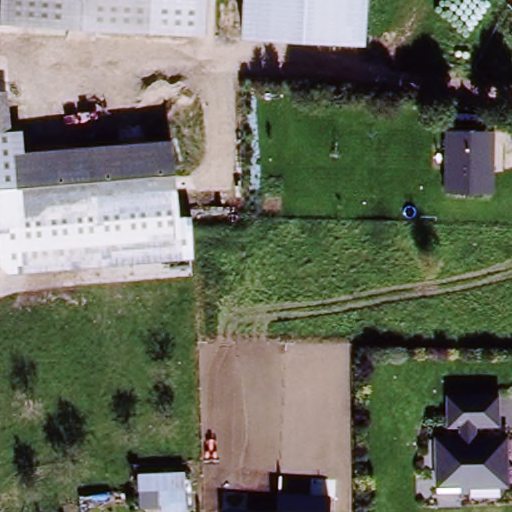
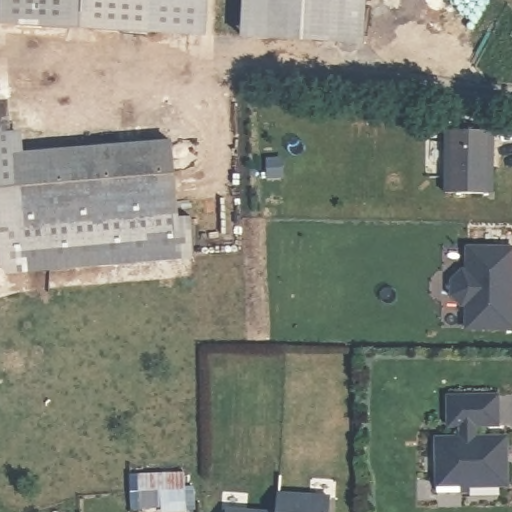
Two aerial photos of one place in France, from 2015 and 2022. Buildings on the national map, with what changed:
unchanged [(0,25),(0,0),(209,0),(208,39),(0,25)]
unchanged [(368,0),(366,45),(241,40),(243,0),(368,0)]
unchanged [(20,226),(17,186),(0,187),(0,98),(10,97),(14,153),(170,140),(179,258),(1,272),(0,260),(0,228),(20,226)]
unchanged [(445,192),(446,131),(496,133),(494,195),(445,192)]
new [(465,272),(470,272),(471,248),(512,249),(512,332),(470,331),(470,308),(465,308),(455,297),(455,282),(465,272)]
unchanged [(435,437),(457,438),(457,430),(448,430),(446,397),(498,395),(500,428),(478,429),(478,438),(507,436),(510,487),(435,488),(435,437)]
unchanged [(188,512),(163,512),(163,509),(140,511),(139,476),(187,474),(189,512),(188,512)]
unchanged [(278,491),(332,497),(330,512),(276,512),(278,491)]
unchanged [(228,508),(265,512),(227,512),(228,508)]

